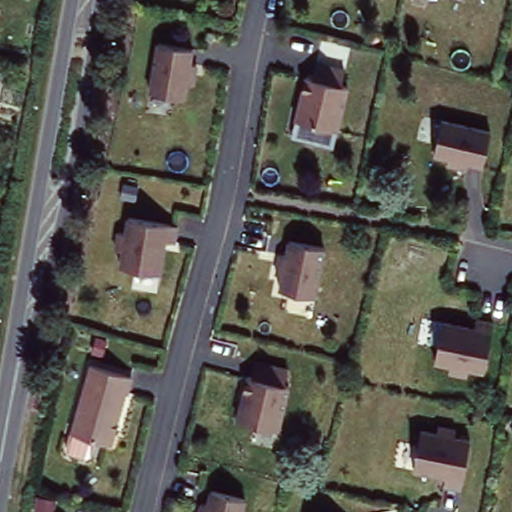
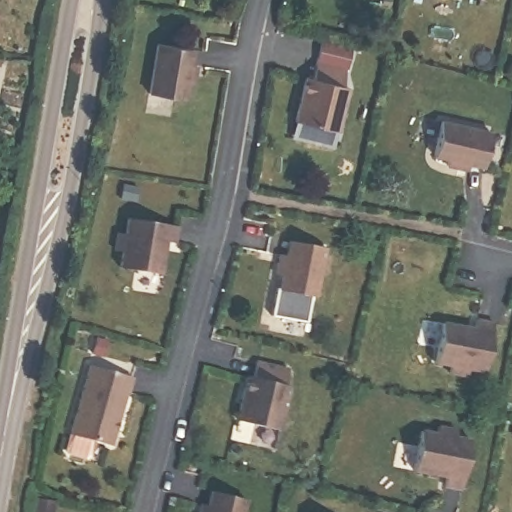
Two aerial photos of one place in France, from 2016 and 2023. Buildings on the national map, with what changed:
unchanged [(158,44),(193,50),(190,65),(197,66),(194,85),(187,84),(185,99),(150,94),(158,44)]
unchanged [(307,71),(313,74),(317,58),(346,65),(342,80),(348,82),(337,126),(296,115),(307,71)]
unchanged [(447,116),(496,127),(488,161),(473,159),(472,164),(452,160),(454,154),(439,150),(447,116)]
unchanged [(178,227),(175,244),(166,242),(161,275),(121,269),(123,252),(116,251),(119,234),(126,234),(129,219),(178,227)]
unchanged [(285,287),(288,273),(282,271),(285,249),(292,251),(295,236),(329,243),(320,293),(285,287)]
unchanged [(448,318),(480,324),(482,315),(499,318),(489,367),(473,364),(472,372),(455,368),(456,361),(440,358),(448,318)]
unchanged [(95,361),(136,373),(116,442),(75,429),(95,361)]
unchanged [(252,378),(255,362),(288,370),(284,386),(288,387),(277,431),(236,421),(247,377),(252,378)]
unchanged [(426,426),(442,429),(444,422),(461,426),(459,433),(475,437),(466,484),(450,481),(451,472),(419,466),(426,426)]
unchanged [(206,501),(213,502),(216,487),(250,495),(246,512),(204,512),(206,501)]
unchanged [(314,511),(320,512),(314,512),(314,511)]

